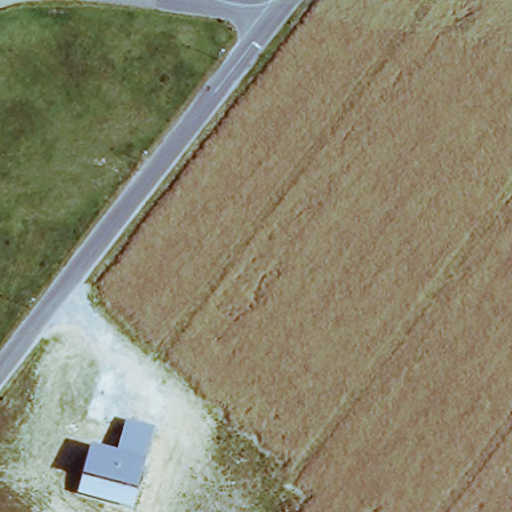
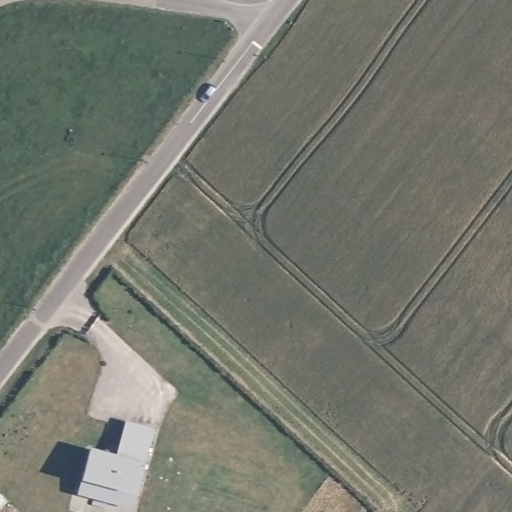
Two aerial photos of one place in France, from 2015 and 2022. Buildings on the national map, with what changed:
unchanged [(153,429),(131,508),(77,494),(90,449),(115,456),(125,422),(153,429)]

